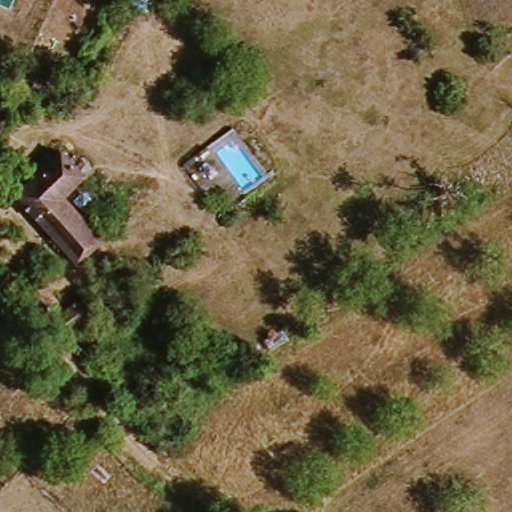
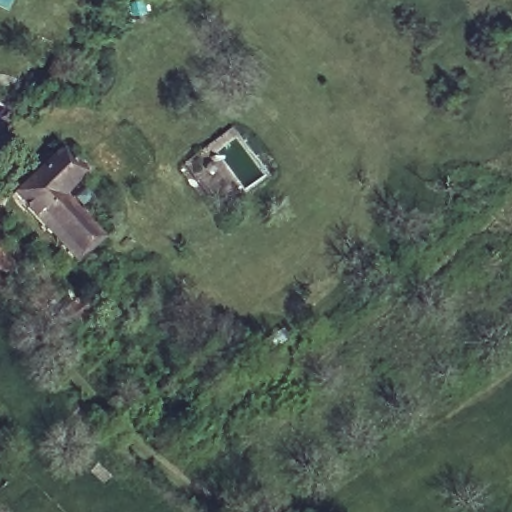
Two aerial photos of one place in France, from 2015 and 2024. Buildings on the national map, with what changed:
unchanged [(51,144),(68,161),(75,154),(84,164),(58,194),(77,213),(97,236),(72,259),(30,214),(11,195),(46,158),(42,153),(51,144)]
unchanged [(15,258),(20,263),(7,275),(0,269),(0,244),(5,249),(9,245),(18,254),(15,258)]
unchanged [(31,299),(51,280),(75,303),(89,289),(99,300),(68,330),(64,325),(57,330),(31,299)]

